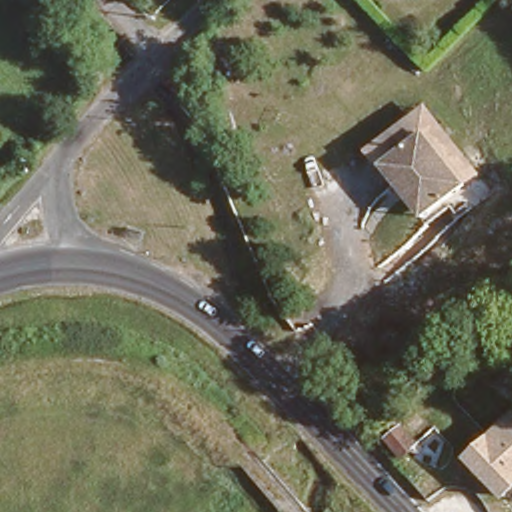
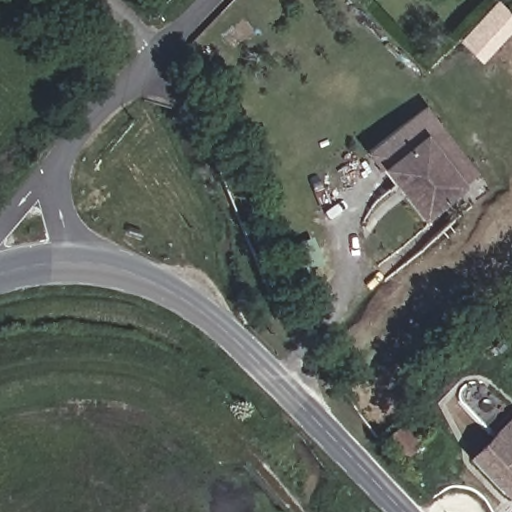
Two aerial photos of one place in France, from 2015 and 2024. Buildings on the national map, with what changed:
new [(458,39),(497,0),(498,0),(512,14),(512,32),(482,62),(458,39)]
unchanged [(377,161),(383,156),(421,127),(462,181),(425,210),(420,214),(377,161)]
unchanged [(466,461),(512,418),(512,498),(507,502),(466,461)]
unchanged [(420,446),(404,462),(382,441),(397,425),(420,446)]

